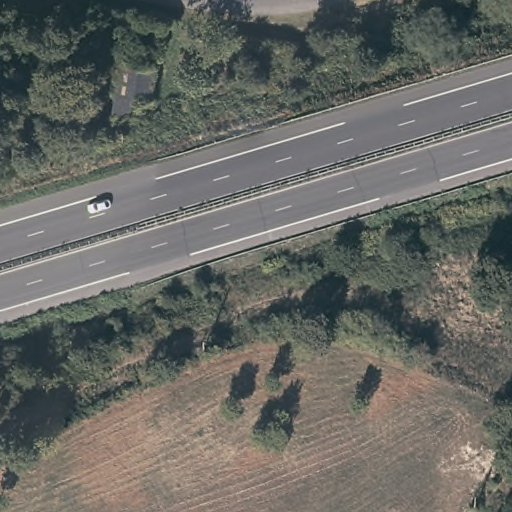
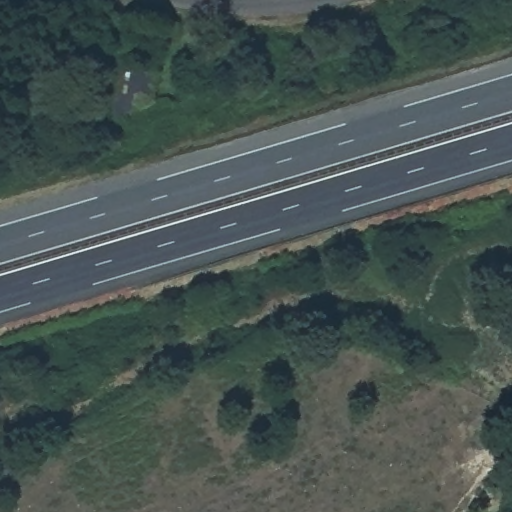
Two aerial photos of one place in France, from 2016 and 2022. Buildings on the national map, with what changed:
unchanged [(155,73),(150,105),(111,122),(119,67),(155,73)]

